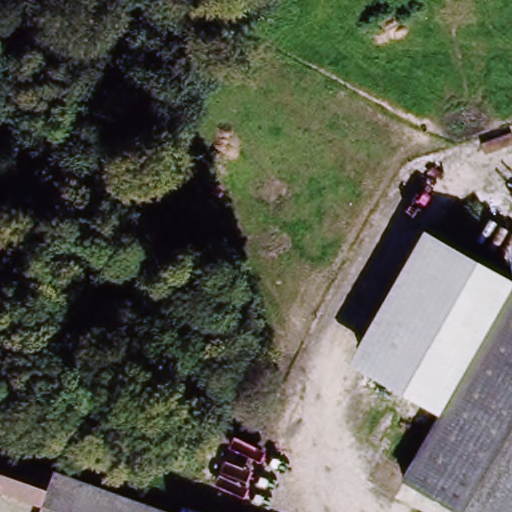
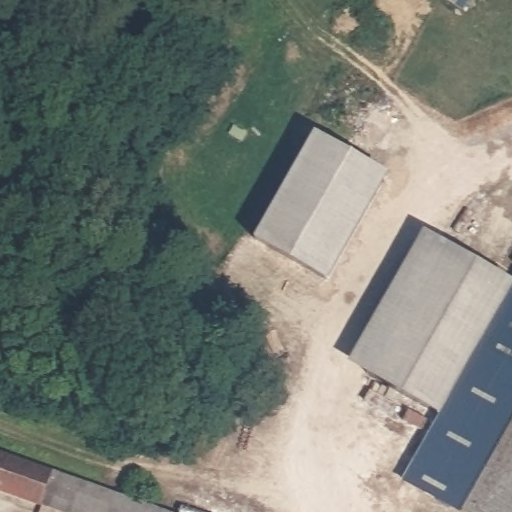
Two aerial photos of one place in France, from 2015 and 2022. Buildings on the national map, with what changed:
new [(390,177),(330,285),(255,241),(316,134),(390,177)]
unchanged [(512,273),(512,470),(487,512),(444,512),(390,480),(431,410),(348,363),(424,232),(506,282),(512,273)]
unchanged [(150,426),(142,464),(125,460),(133,422),(150,426)]
unchanged [(58,474),(44,511),(0,496),(0,447),(58,474)]
unchanged [(512,512),(487,512),(512,470),(512,512)]
unchanged [(116,499),(156,512),(46,512),(44,511),(58,474),(116,499)]

